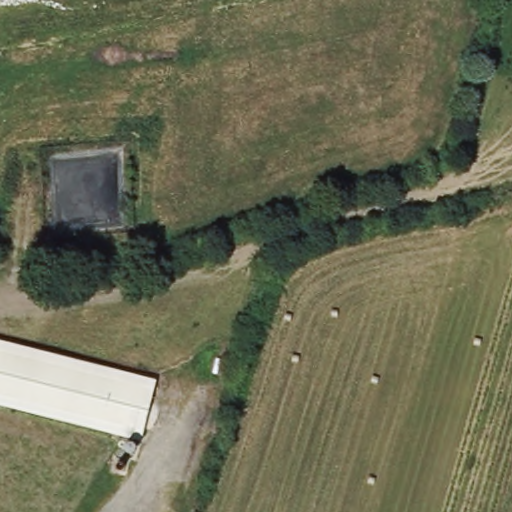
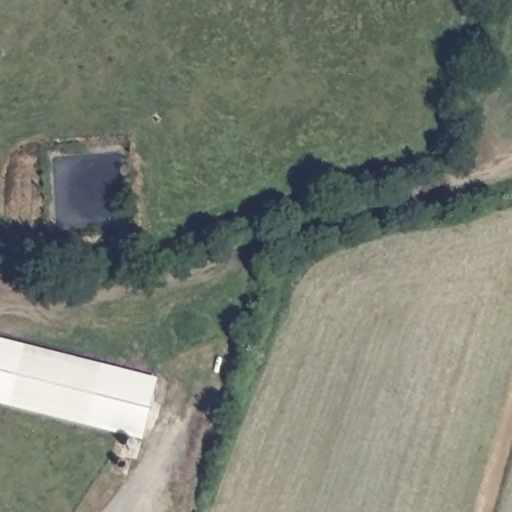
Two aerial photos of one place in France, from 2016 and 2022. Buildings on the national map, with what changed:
unchanged [(143,437),(0,401),(0,344),(156,383),(143,437)]

